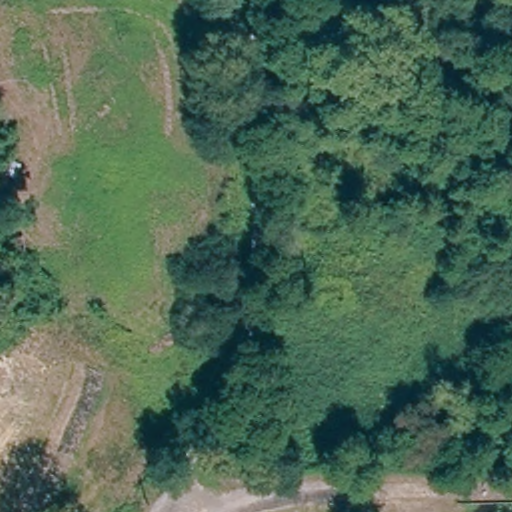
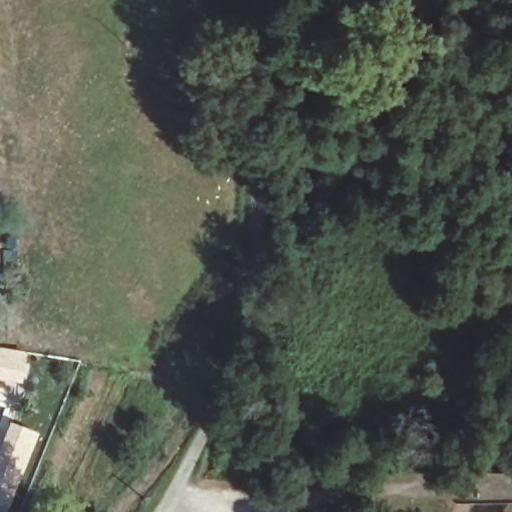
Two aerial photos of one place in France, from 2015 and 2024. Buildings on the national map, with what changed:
new [(22,381),(0,378),(0,349),(25,352),(22,381)]
new [(35,427),(8,496),(0,493),(0,452),(13,419),(35,427)]

